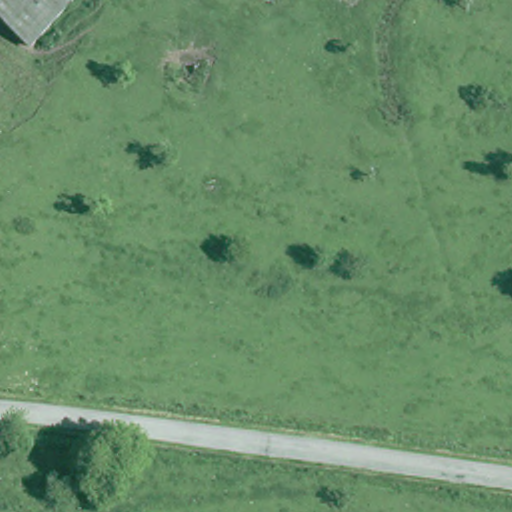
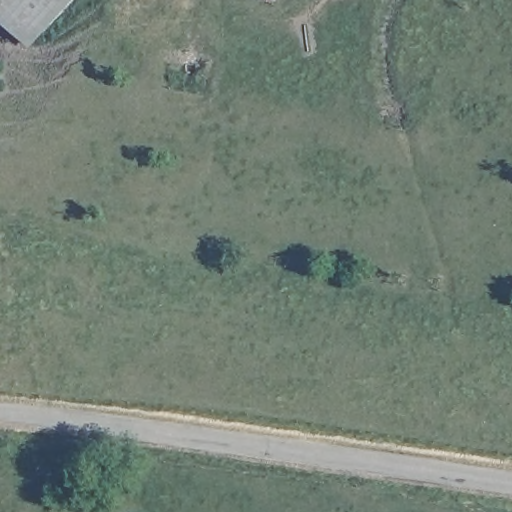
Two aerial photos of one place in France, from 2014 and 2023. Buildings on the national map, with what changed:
unchanged [(0,11),(0,0),(69,0),(32,41),(0,11)]

